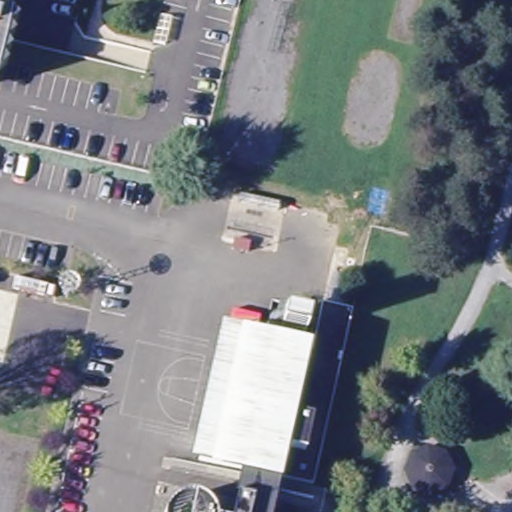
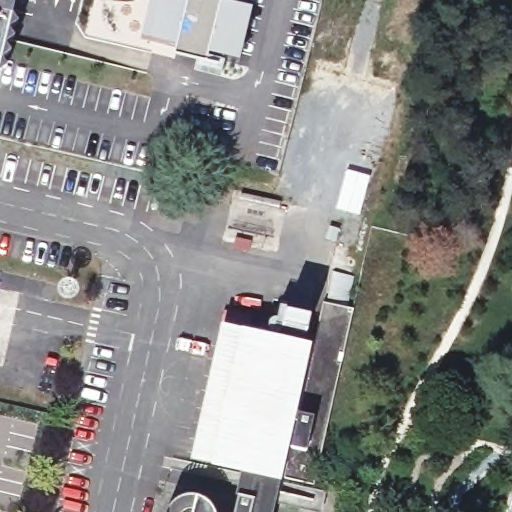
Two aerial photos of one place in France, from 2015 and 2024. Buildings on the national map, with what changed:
unchanged [(4,2),(11,4),(8,15),(14,22),(4,30),(10,37),(1,45),(7,52),(0,57),(0,0),(5,0),(4,2)]
new [(241,7),(252,10),(240,65),(208,56),(205,66),(173,59),(175,52),(140,44),(150,0),(242,0),(241,7)]
unchanged [(3,67),(0,69),(0,63),(3,67)]
unchanged [(234,329),(318,348),(328,304),(330,305),(336,273),(361,278),(354,310),(359,311),(319,485),(287,478),(286,484),(245,475),(203,466),(234,329)]
unchanged [(313,322),(310,334),(287,329),(290,316),(313,322)]
unchanged [(203,466),(194,464),(226,327),(234,329),(203,466)]
unchanged [(245,475),(286,484),(331,492),(327,512),(312,512),(279,505),(278,512),(256,512),(259,501),(243,498),(241,497),(245,475)]
unchanged [(259,501),(256,512),(239,512),(243,498),(259,501)]
unchanged [(183,502),(195,501),(204,502),(212,506),(216,511),(217,512),(175,512),(178,506),(183,502)]

